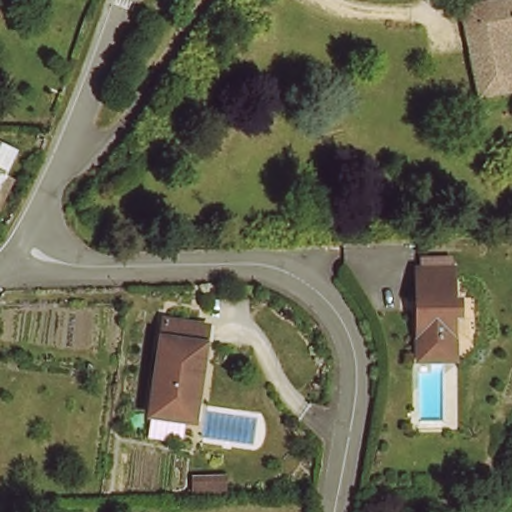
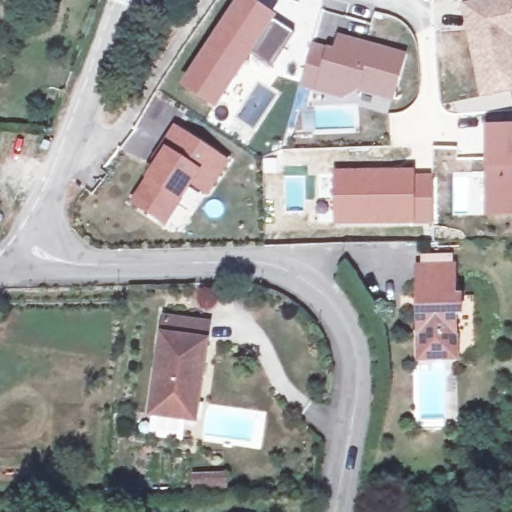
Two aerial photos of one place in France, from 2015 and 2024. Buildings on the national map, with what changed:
new [(277,15),(273,19),(294,33),(270,67),(251,54),(215,108),(181,87),(201,51),(236,0),(253,0),(277,15)]
unchanged [(511,87),(472,85),(474,13),(474,0),(512,0),(512,36),(511,87)]
new [(311,41),(332,47),(337,33),(407,52),(392,102),(357,93),(343,100),(307,90),(298,87),(311,41)]
new [(150,165),(173,123),(230,159),(207,196),(190,187),(165,226),(127,201),(150,165)]
new [(484,125),(512,125),(512,217),(482,216),(482,171),(484,125)]
demolished [(0,143),(5,132),(30,143),(17,168),(27,173),(12,200),(0,195),(0,143)]
new [(333,168),(415,168),(415,173),(432,173),(432,224),(333,225),(333,168)]
new [(452,172),(482,171),(482,216),(452,214),(452,172)]
unchanged [(420,270),(424,269),(425,269),(425,260),(437,259),(457,257),(457,266),(460,266),(461,297),(468,296),(470,317),(463,318),(465,348),(465,360),(426,363),(420,270)]
unchanged [(166,430),(167,408),(170,310),(213,312),(211,391),(202,391),(202,409),(201,431),(166,430)]
unchanged [(230,479),(229,491),(195,492),(196,479),(230,479)]

